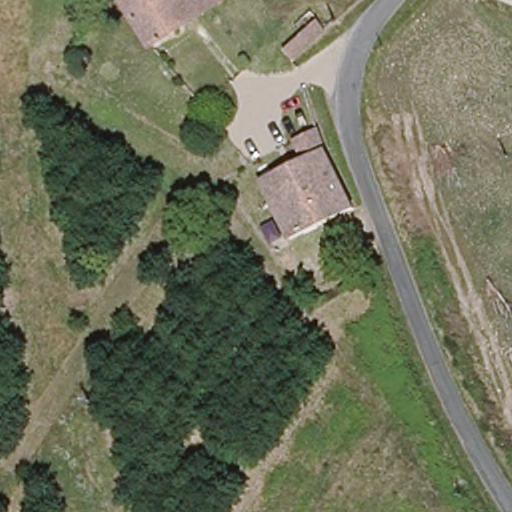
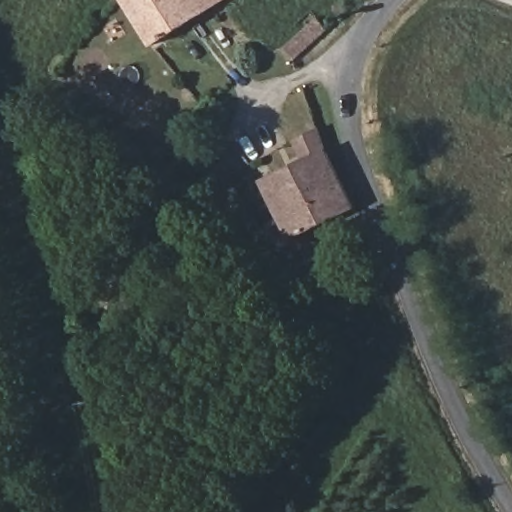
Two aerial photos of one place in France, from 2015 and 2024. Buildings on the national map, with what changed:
unchanged [(223,0),(157,41),(128,0),(223,0)]
unchanged [(321,30),(294,54),(283,42),(313,19),(321,30)]
unchanged [(259,186),(302,164),(293,146),(319,133),(325,151),(353,209),(333,220),(290,242),(261,187),(259,186)]

